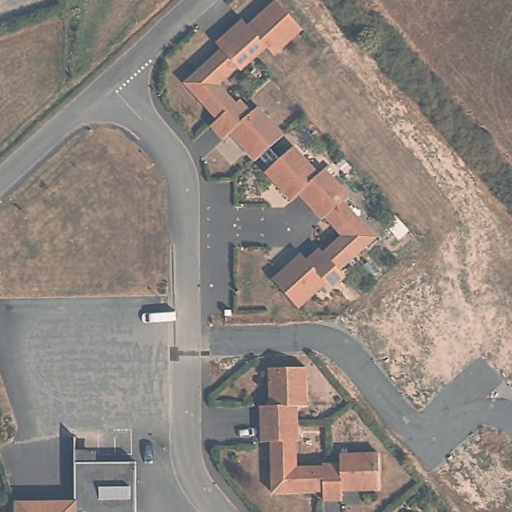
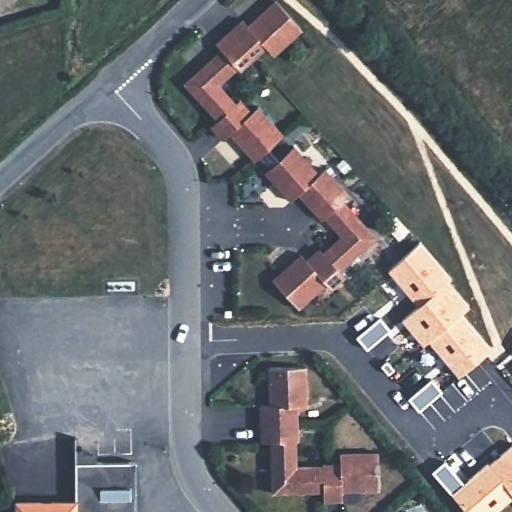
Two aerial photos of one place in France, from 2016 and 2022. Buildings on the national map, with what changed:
unchanged [(243,20),(249,26),(276,1),(302,29),(273,55),(267,47),(241,71),(238,67),(219,85),(236,103),(239,101),(251,114),(258,107),(284,135),(255,161),(230,134),(224,139),(212,125),(218,120),(185,83),(222,50),(216,44),(243,20)]
unchanged [(294,146),(319,174),(325,169),(349,195),(343,201),(377,237),(340,271),(346,277),(332,289),(326,283),(299,308),(295,304),(273,280),(301,254),(308,261),(321,250),(324,252),(342,236),(325,217),(322,220),(299,194),(291,201),(266,172),(294,146)]
new [(421,240),(452,277),(448,281),(469,307),(462,312),(492,350),(459,376),(429,341),(423,345),(401,319),(418,305),(387,270),(421,240)]
unchanged [(323,463),(343,462),(343,452),(380,451),(382,487),(347,488),(348,500),(326,501),(326,492),(279,494),(277,442),(264,443),(262,408),(273,408),(271,370),(306,368),(307,405),(299,405),(300,422),(301,440),(298,440),(300,467),(323,466),(323,463)]
unchanged [(21,498),(78,497),(77,457),(140,457),(140,512),(21,512),(21,498)]
new [(512,493),(512,496),(494,512),(468,512),(452,492),(487,462),(512,493)]

